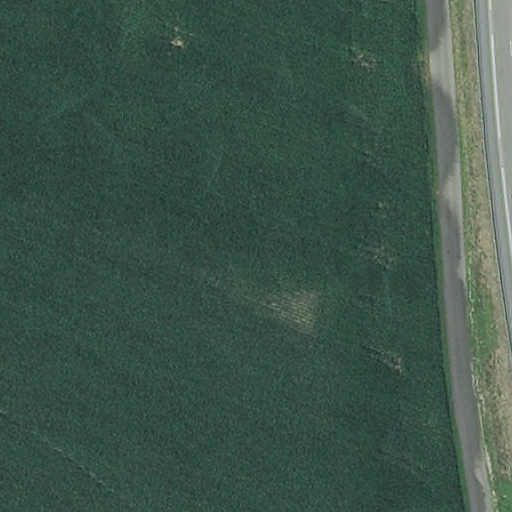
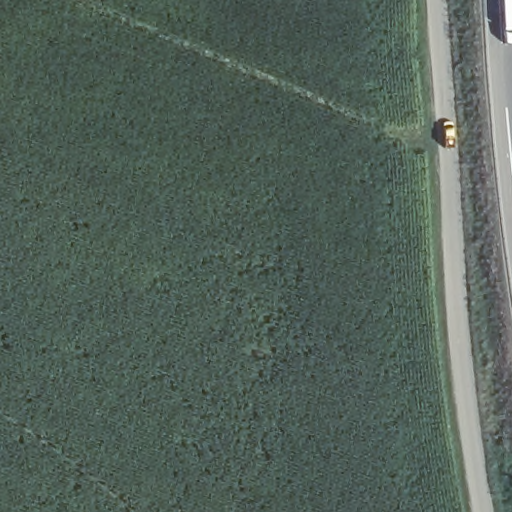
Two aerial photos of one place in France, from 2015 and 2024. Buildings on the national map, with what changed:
[]

